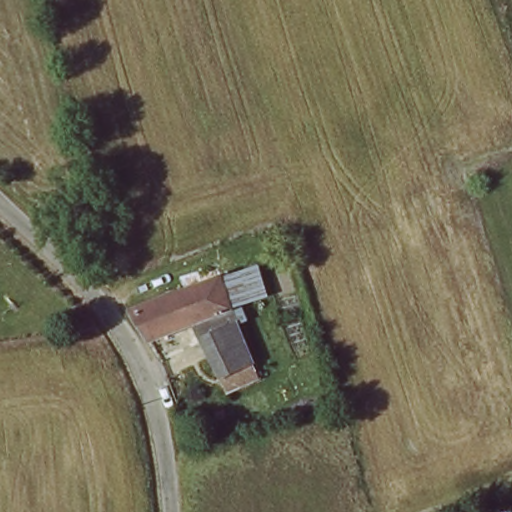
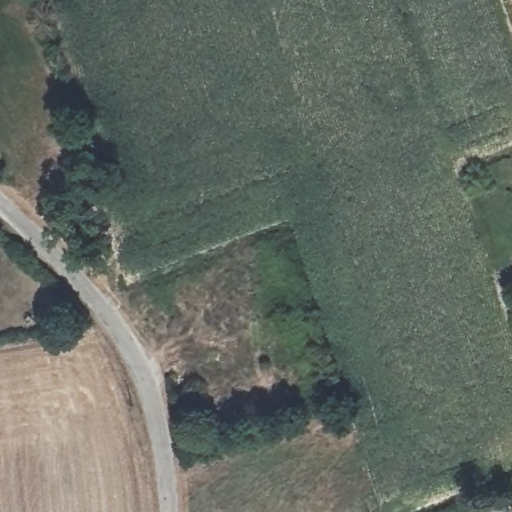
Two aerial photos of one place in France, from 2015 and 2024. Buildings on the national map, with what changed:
demolished [(253,264),(265,293),(241,303),(248,321),(235,326),(227,308),(226,304),(214,278),(253,264)]
demolished [(202,283),(213,309),(226,304),(227,308),(189,326),(186,320),(143,335),(126,311),(202,283)]
demolished [(227,308),(235,326),(248,356),(218,371),(189,326),(227,308)]

